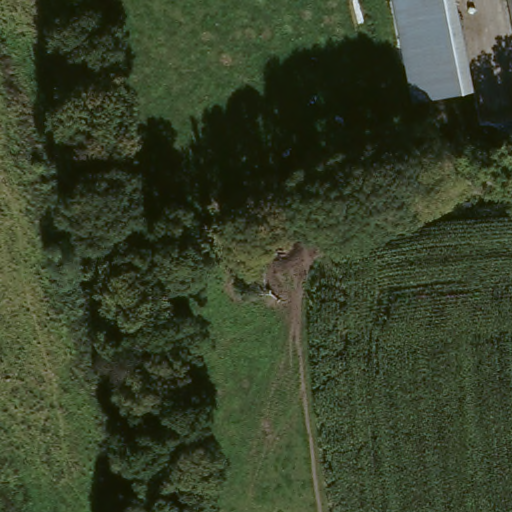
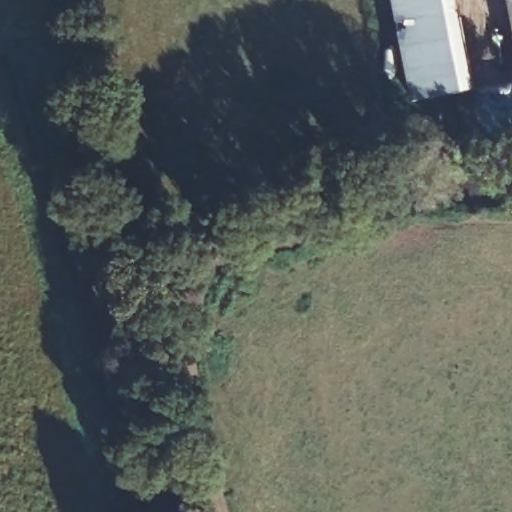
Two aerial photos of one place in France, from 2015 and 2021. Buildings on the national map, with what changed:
unchanged [(463,96),(409,105),(392,0),(447,0),(463,96)]
unchanged [(503,0),(512,0),(512,47),(503,0)]

